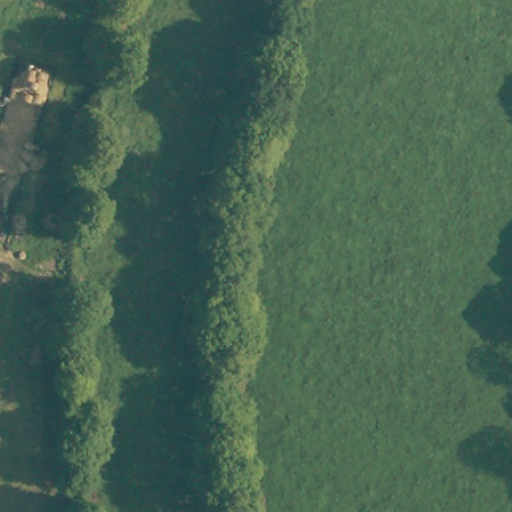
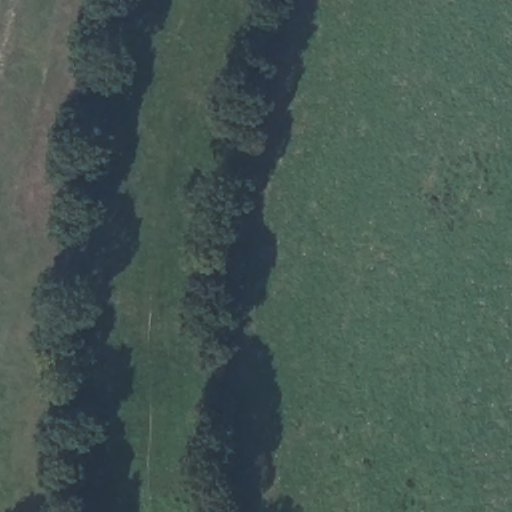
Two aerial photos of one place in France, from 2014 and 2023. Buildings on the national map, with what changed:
[]

